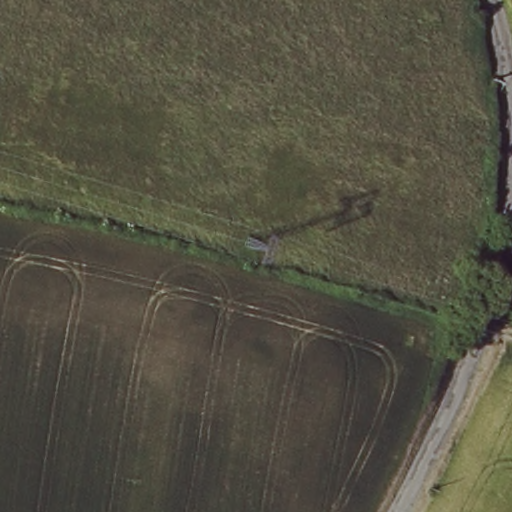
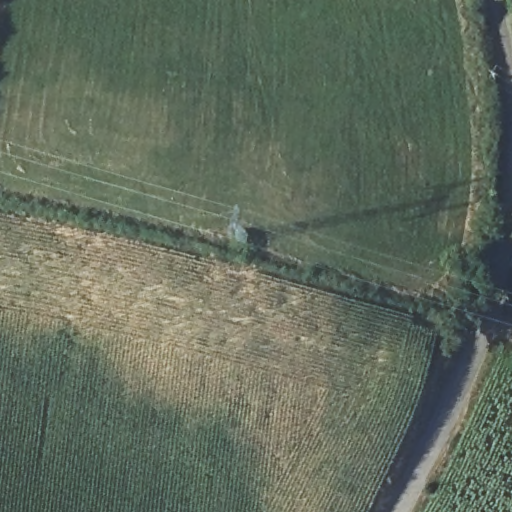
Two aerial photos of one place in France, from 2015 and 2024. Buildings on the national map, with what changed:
[]

